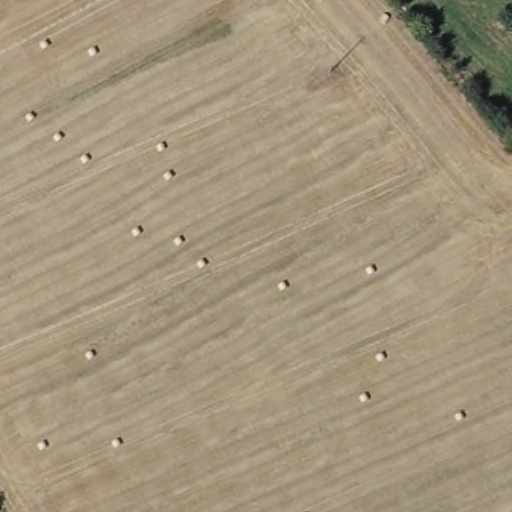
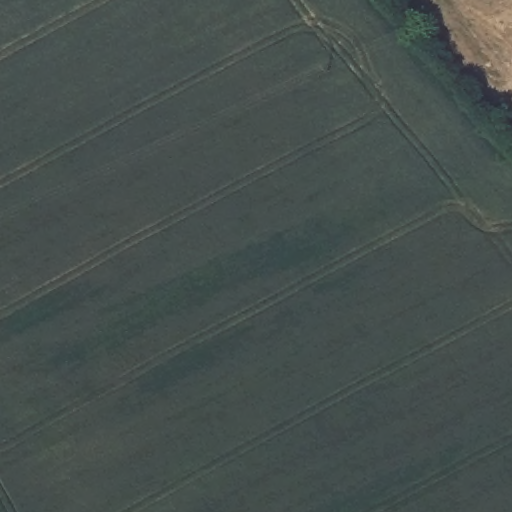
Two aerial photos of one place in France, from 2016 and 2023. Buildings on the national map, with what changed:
[]

